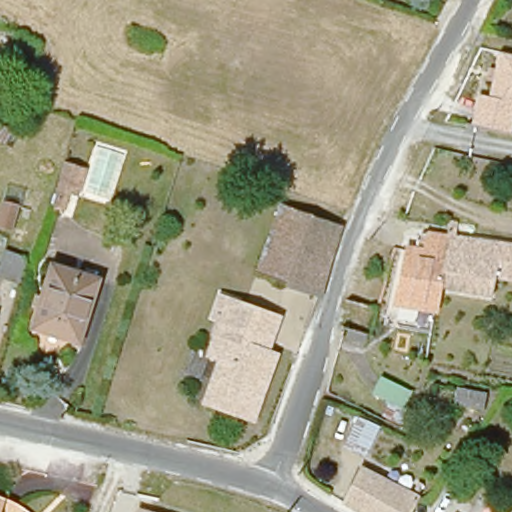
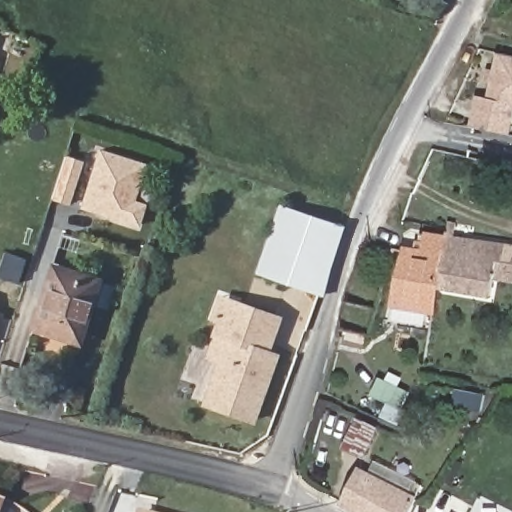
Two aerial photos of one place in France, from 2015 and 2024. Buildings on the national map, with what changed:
unchanged [(503,136),(469,125),(475,108),(480,95),(491,99),(496,84),(506,55),(512,56),(512,113),(510,117),(503,136)]
demolished [(23,137),(15,151),(0,142),(0,123),(23,137)]
new [(80,207),(99,148),(146,163),(134,200),(146,205),(139,227),(80,207)]
unchanged [(86,167),(79,193),(69,190),(61,216),(46,211),(61,160),(86,167)]
demolished [(18,206),(8,233),(0,230),(0,200),(18,206)]
unchanged [(338,223),(318,290),(255,271),(274,203),(338,223)]
unchanged [(451,239),(442,291),(439,308),(438,313),(395,306),(406,245),(424,247),(427,232),(443,234),(447,235),(448,227),(449,224),(454,225),(452,234),(451,239)]
unchanged [(502,241),(491,298),(442,291),(451,239),(452,234),(502,241)]
unchanged [(25,257),(19,281),(0,275),(0,264),(0,262),(0,261),(0,250),(25,257)]
unchanged [(50,264),(101,280),(80,346),(29,331),(50,264)]
unchanged [(262,340),(259,348),(268,351),(244,417),(196,398),(219,335),(206,330),(211,315),(205,312),(207,307),(212,292),(219,295),(271,314),(262,340)]
unchanged [(338,332),(347,301),(379,309),(372,340),(338,332)]
unchanged [(407,384),(394,412),(379,405),(385,392),(370,385),(377,368),(407,384)]
unchanged [(456,388),(486,394),(482,412),(453,406),(456,388)]
unchanged [(503,394),(503,390),(510,391),(512,391),(512,404),(498,402),(503,394)]
unchanged [(374,421),(360,452),(340,442),(354,412),(374,421)]
unchanged [(338,500),(340,497),(356,465),(412,492),(411,495),(401,512),(359,512),(338,500)]
unchanged [(139,510),(148,512),(138,512),(139,510)]

